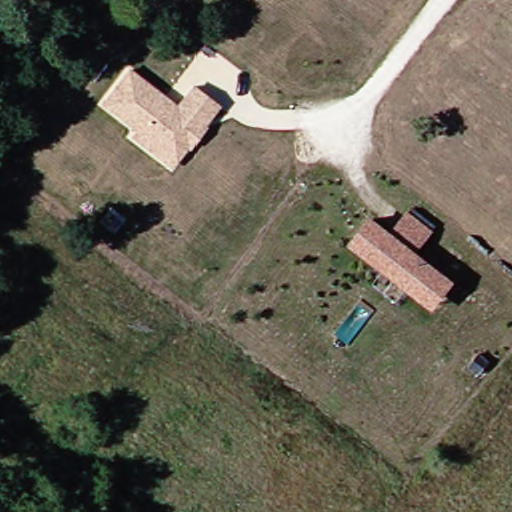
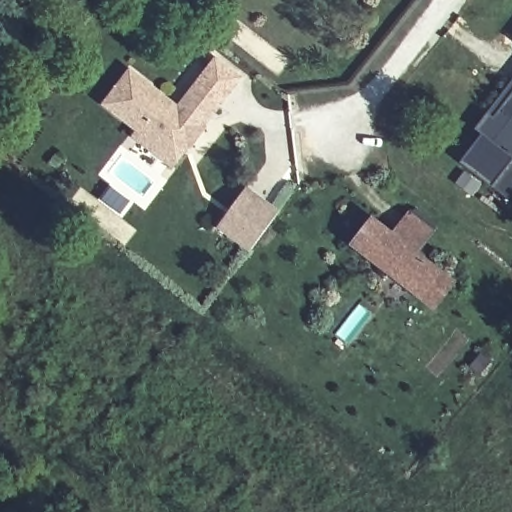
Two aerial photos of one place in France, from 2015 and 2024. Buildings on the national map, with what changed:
unchanged [(131,135),(136,130),(103,102),(129,68),(177,104),(193,85),(221,106),(171,167),(131,135)]
new [(512,82),(512,194),(509,199),(461,162),(482,135),(475,130),(512,82)]
new [(246,186),(280,210),(251,250),(218,226),(246,186)]
unchanged [(435,307),(427,300),(359,242),(374,225),(396,241),(414,222),(432,235),(421,247),(415,253),(443,280),(453,287),(435,307)]

